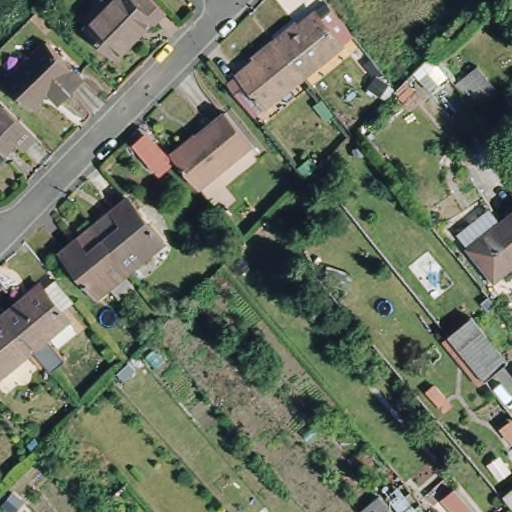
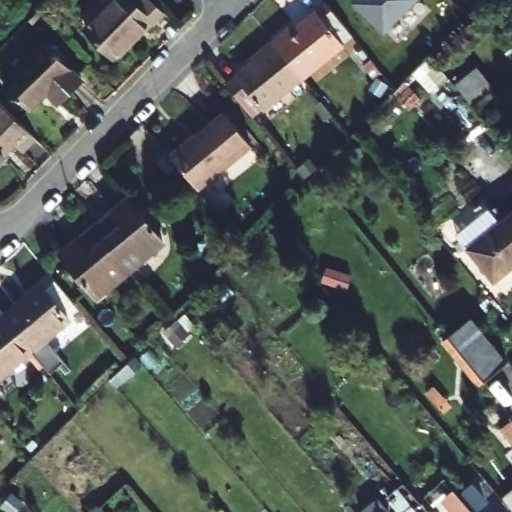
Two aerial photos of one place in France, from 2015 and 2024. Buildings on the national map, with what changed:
unchanged [(156,32),(152,28),(114,64),(88,37),(126,0),(147,0),(167,21),(156,32)]
new [(386,32),(353,2),(354,0),(415,0),(386,32)]
unchanged [(361,41),(309,81),(281,43),(301,27),(310,38),(340,14),(361,41)]
unchanged [(43,36),(79,72),(55,95),(44,86),(26,103),(1,78),(43,36)]
unchanged [(309,81),(286,98),(260,120),(239,93),(267,72),(258,61),(281,43),(309,81)]
unchanged [(456,86),(477,69),(494,90),(473,107),(456,86)]
unchanged [(11,136),(0,147),(0,99),(1,98),(7,104),(33,131),(18,144),(11,136)]
unchanged [(195,142),(228,116),(254,150),(220,175),(195,142)]
unchanged [(201,190),(175,157),(195,142),(220,175),(201,190)]
unchanged [(98,226),(133,199),(168,244),(133,270),(98,226)]
unchanged [(504,284),(471,244),(459,231),(492,204),(504,218),(512,211),(512,277),(504,284)]
unchanged [(98,297),(63,252),(98,226),(133,270),(98,297)]
unchanged [(75,309),(63,319),(68,326),(30,357),(3,322),(40,292),(43,295),(56,285),(75,309)]
unchanged [(0,381),(0,324),(3,322),(30,357),(0,381)]
unchanged [(491,386),(453,339),(477,322),(512,368),(512,370),(491,386)]
unchanged [(503,434),(512,426),(512,445),(503,434)]
unchanged [(403,476),(429,507),(434,512),(404,512),(385,491),(403,476)]
unchanged [(460,490),(479,512),(461,512),(449,498),(460,490)]
unchanged [(387,502),(396,512),(385,512),(381,507),(387,502)]

